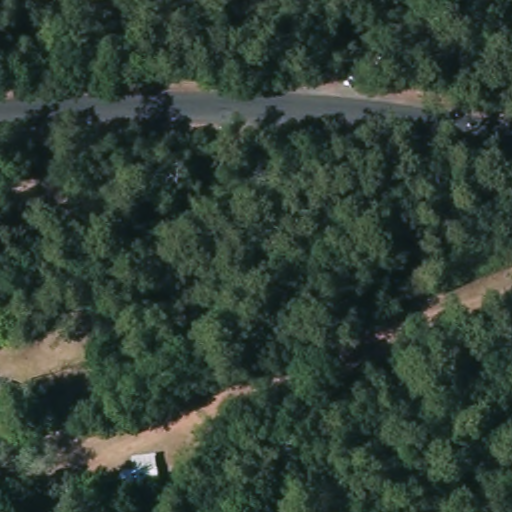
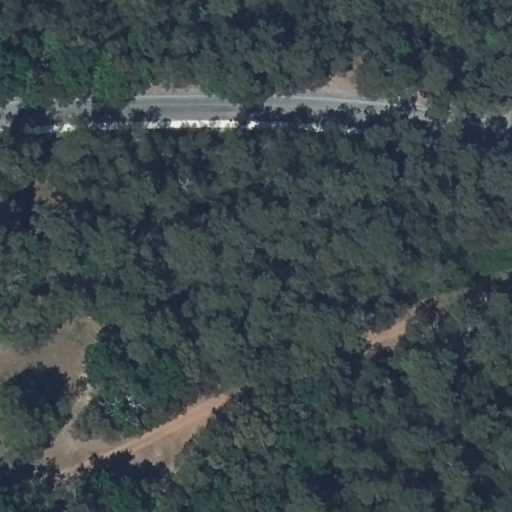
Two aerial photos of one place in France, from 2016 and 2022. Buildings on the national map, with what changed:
[]

